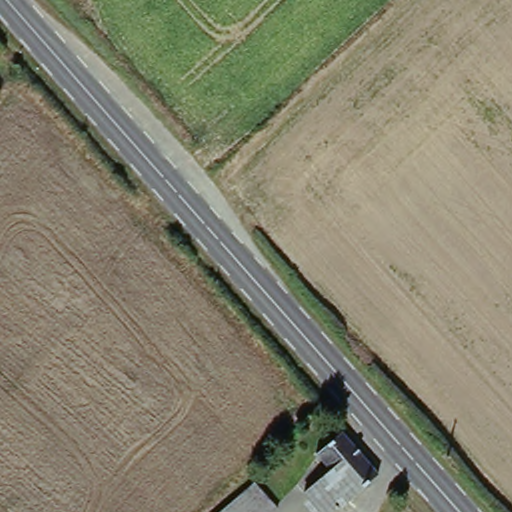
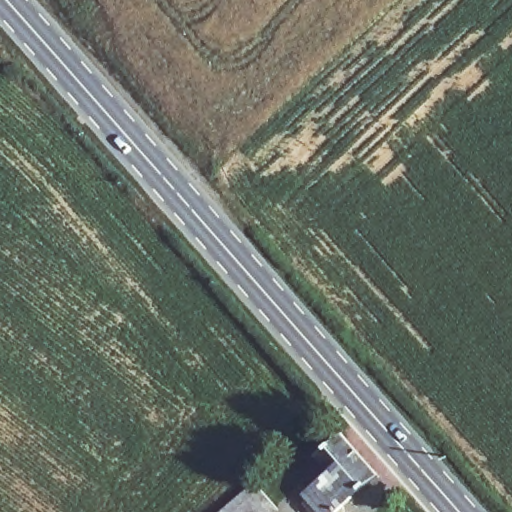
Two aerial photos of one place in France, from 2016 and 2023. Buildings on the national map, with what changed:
unchanged [(383,470),(338,512),(330,512),(309,489),(333,468),(319,451),(344,430),(383,470)]
unchanged [(256,476),(282,503),(272,512),(217,512),(256,476)]

